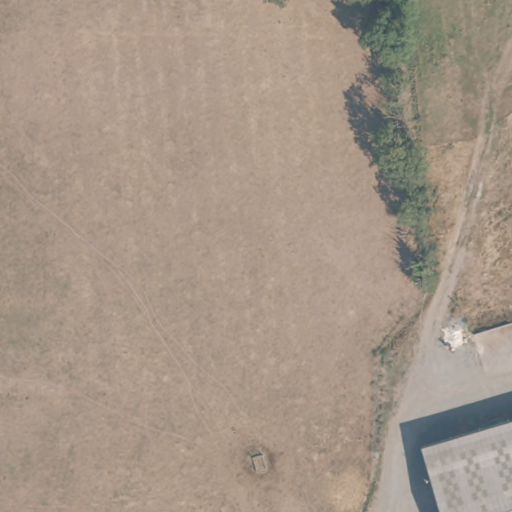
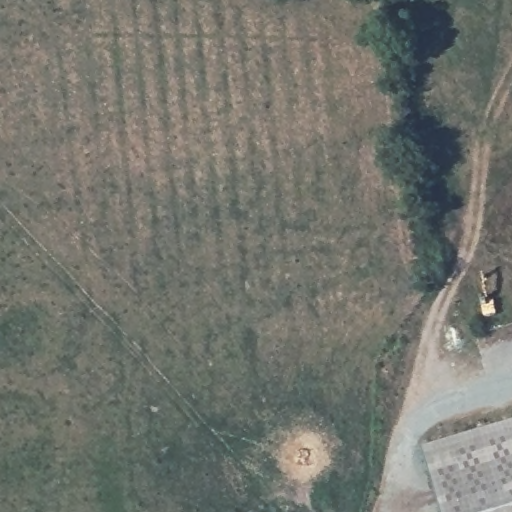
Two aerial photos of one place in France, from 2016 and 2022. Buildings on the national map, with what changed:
unchanged [(512,417),(512,512),(439,512),(420,445),(512,417)]

